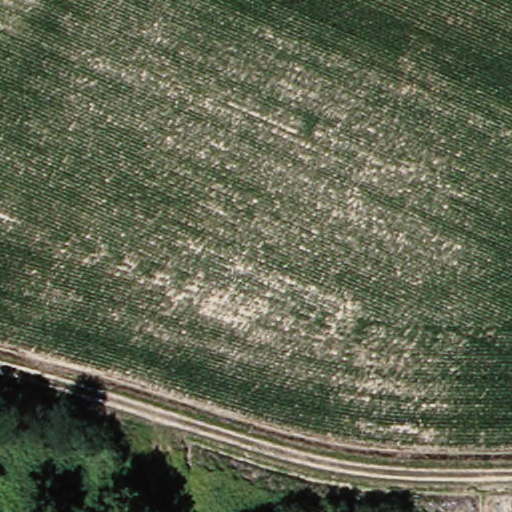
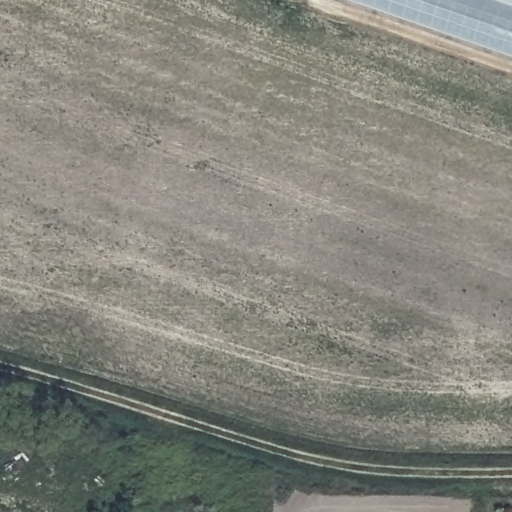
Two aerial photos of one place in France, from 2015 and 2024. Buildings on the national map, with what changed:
new [(512,0),(512,53),(355,0),(512,0)]

